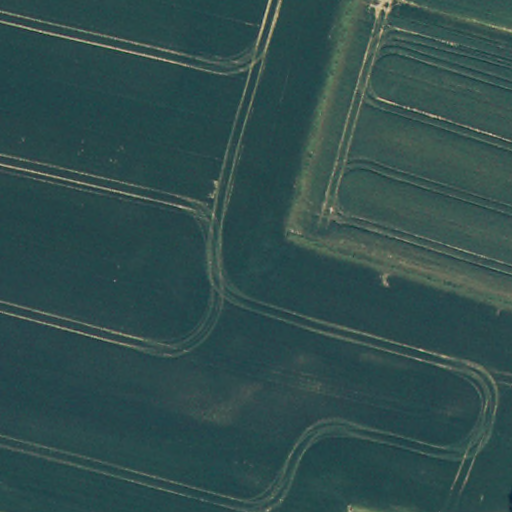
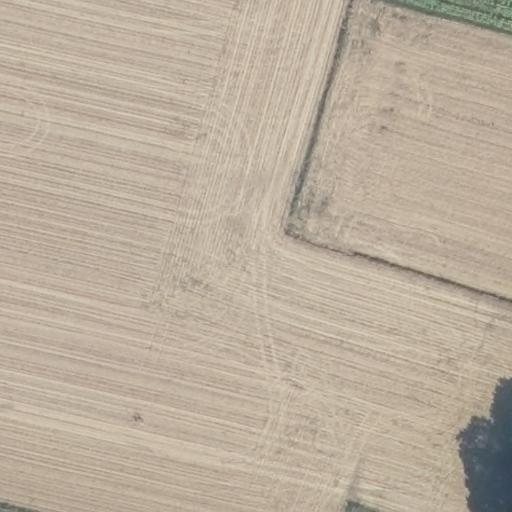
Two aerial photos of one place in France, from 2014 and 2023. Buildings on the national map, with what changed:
[]

